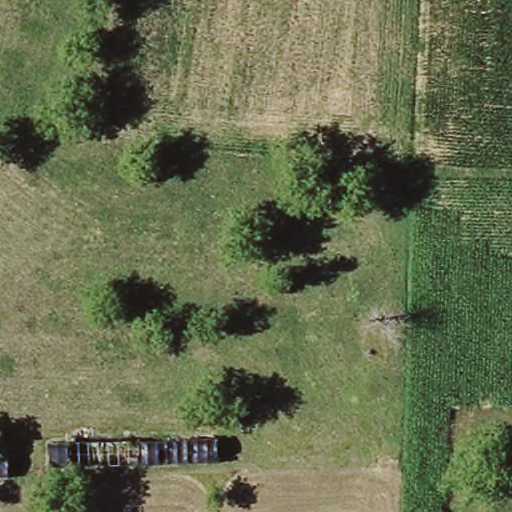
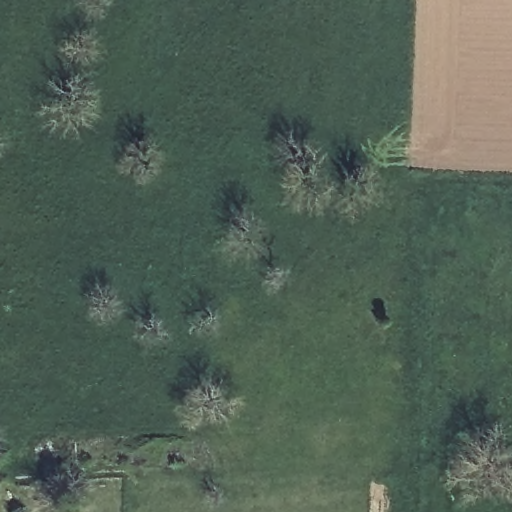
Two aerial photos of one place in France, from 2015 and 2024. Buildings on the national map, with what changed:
unchanged [(9,475),(0,474),(0,450),(9,450),(9,475)]

